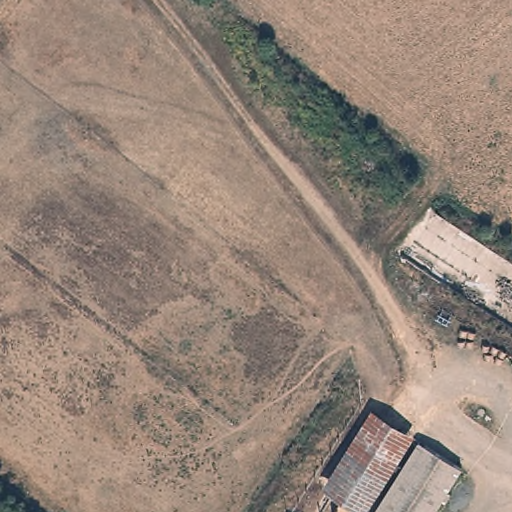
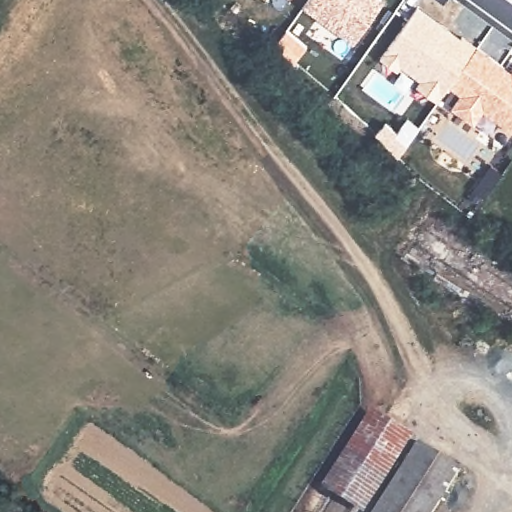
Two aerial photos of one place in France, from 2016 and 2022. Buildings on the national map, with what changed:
new [(383,0),(384,1),(354,42),(303,6),(307,0),(383,0)]
new [(418,6),(462,37),(464,35),(478,45),(448,86),(437,101),(416,85),(420,79),(401,66),(397,71),(381,58),(418,6)]
new [(478,45),(512,70),(512,131),(484,111),(474,125),(450,108),(461,94),(448,86),(478,45)]
unchanged [(402,428),(348,512),(340,512),(327,502),(383,415),(402,428)]
unchanged [(419,437),(462,467),(433,512),(373,512),(419,437)]

